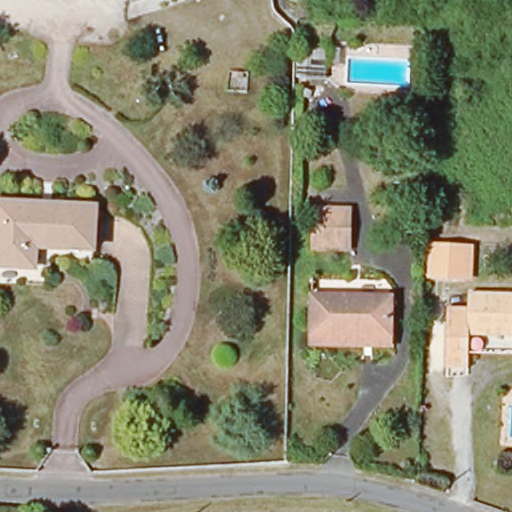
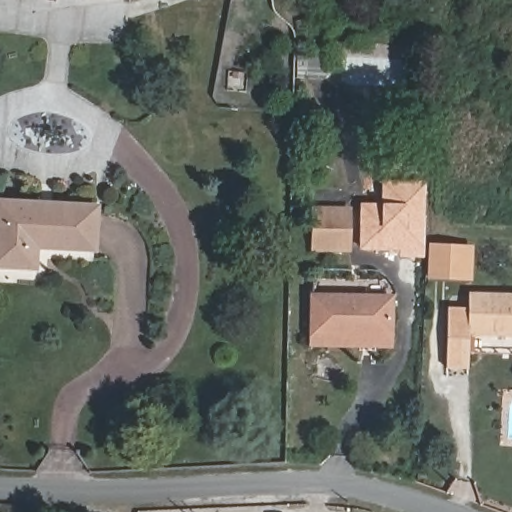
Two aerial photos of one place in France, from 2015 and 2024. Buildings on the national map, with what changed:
new [(382,179),(426,180),(424,258),(403,257),(403,250),(361,249),(363,204),(381,203),(382,179)]
unchanged [(95,253),(39,248),(36,269),(0,266),(0,204),(99,210),(95,253)]
unchanged [(315,256),(316,204),(350,205),(348,256),(315,256)]
unchanged [(476,281),(440,279),(442,240),(477,242),(476,281)]
unchanged [(310,344),(309,332),(312,294),(393,299),(391,337),(391,349),(310,344)]
unchanged [(471,336),(470,369),(448,369),(450,309),(470,309),(470,294),(512,294),(512,336),(471,336)]

